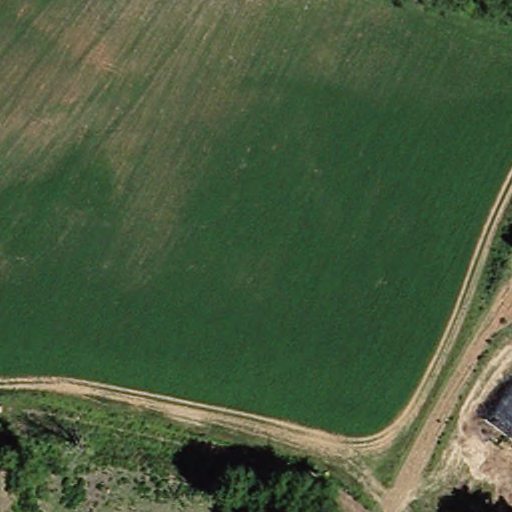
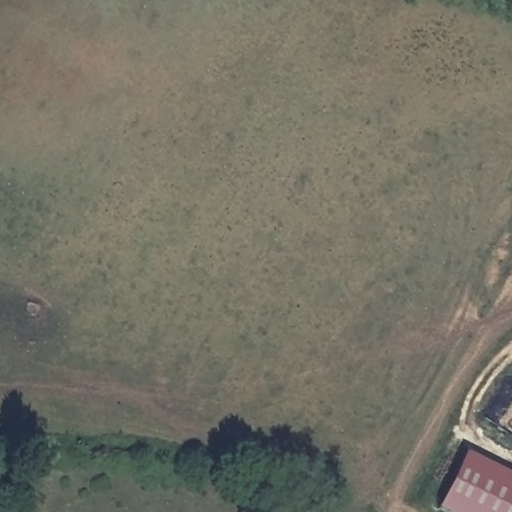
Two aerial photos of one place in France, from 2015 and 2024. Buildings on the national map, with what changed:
unchanged [(512,239),(512,246),(508,243),(512,239)]
new [(465,455),(512,479),(512,512),(446,512),(438,508),(465,455)]

